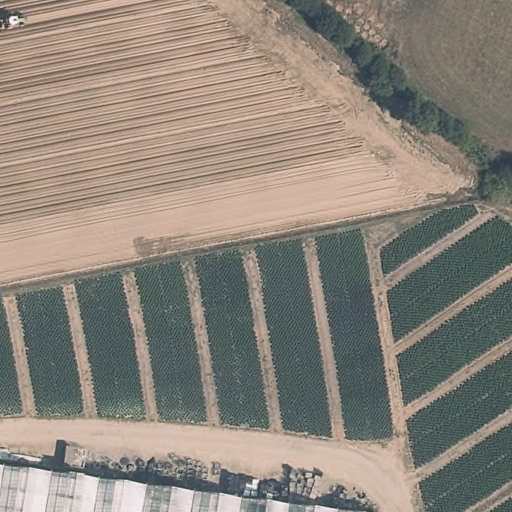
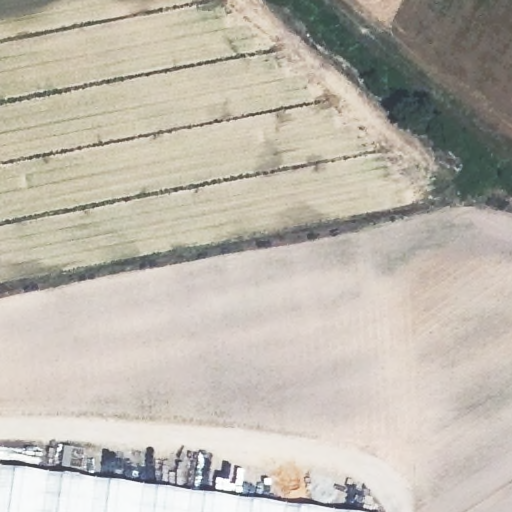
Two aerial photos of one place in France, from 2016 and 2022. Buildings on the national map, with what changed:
unchanged [(0,467),(340,512),(0,512),(0,467)]

